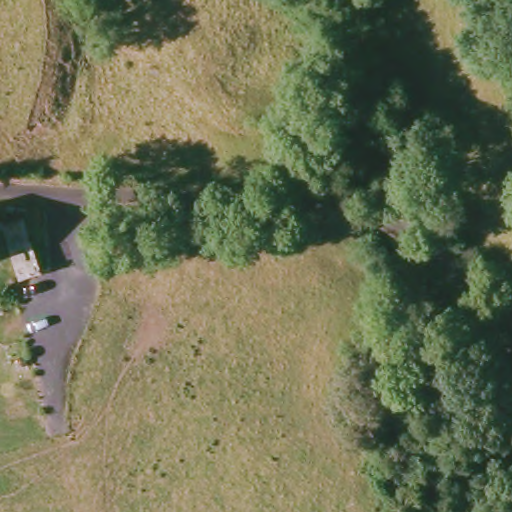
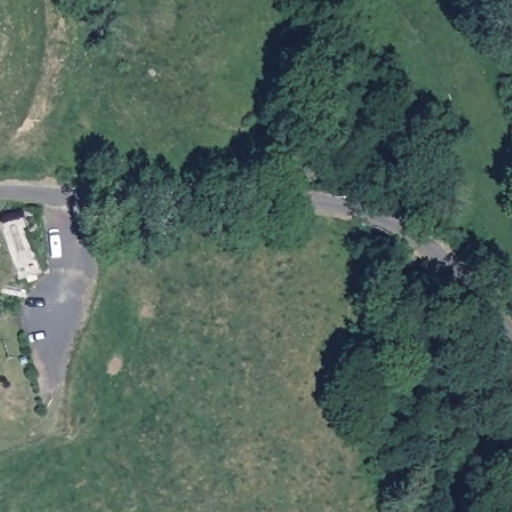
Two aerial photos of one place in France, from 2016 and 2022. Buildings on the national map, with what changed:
unchanged [(42,264),(40,212),(67,212),(71,263),(42,264)]

